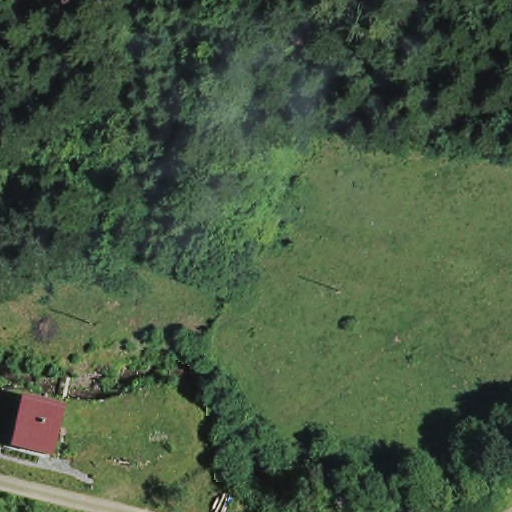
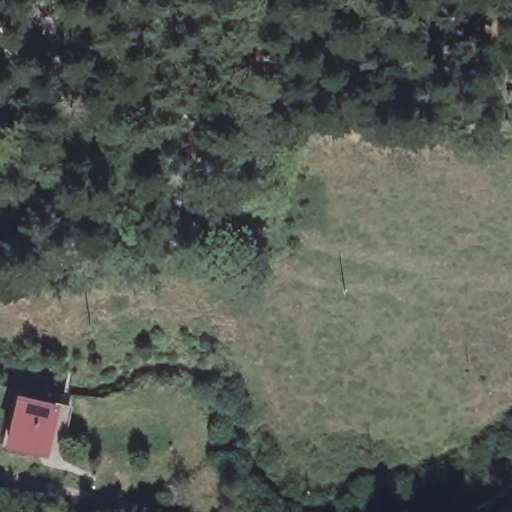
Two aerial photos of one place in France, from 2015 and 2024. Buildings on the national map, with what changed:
unchanged [(58,404),(48,448),(45,446),(45,444),(13,436),(13,439),(10,439),(20,395),(58,404)]

